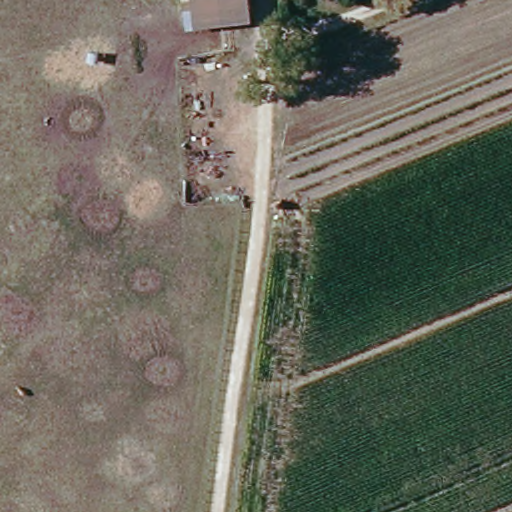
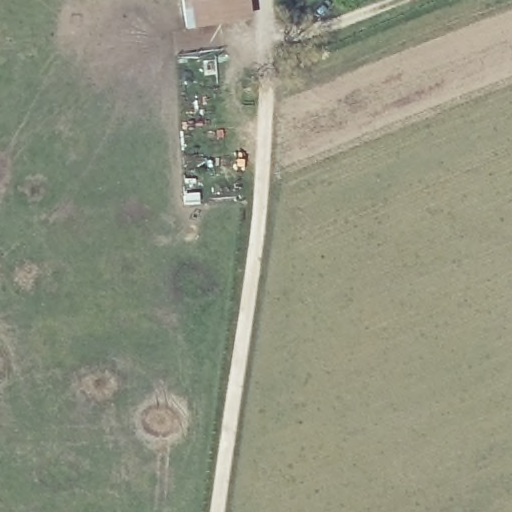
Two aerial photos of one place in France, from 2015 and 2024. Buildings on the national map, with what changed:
unchanged [(189,0),(242,0),(245,25),(193,32),(189,0)]

